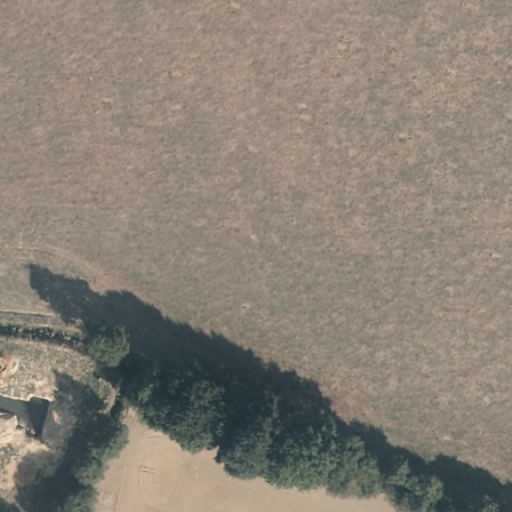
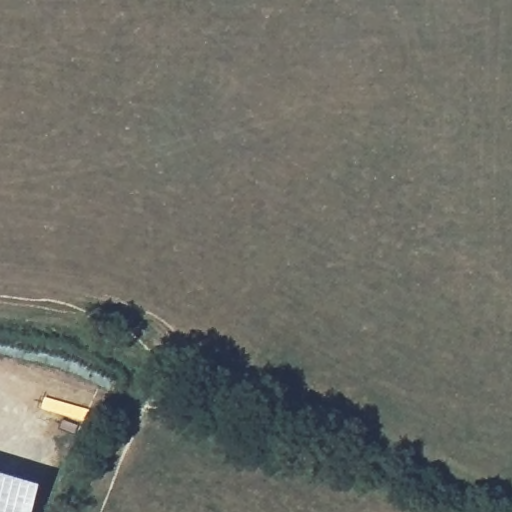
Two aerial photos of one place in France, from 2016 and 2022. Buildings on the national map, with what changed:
new [(45,489),(38,512),(0,512),(0,476),(45,489)]

